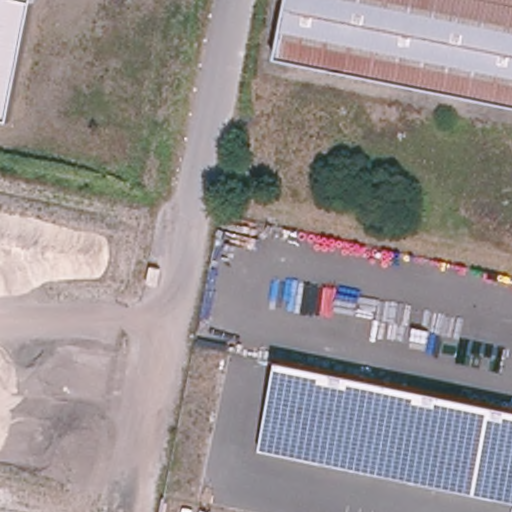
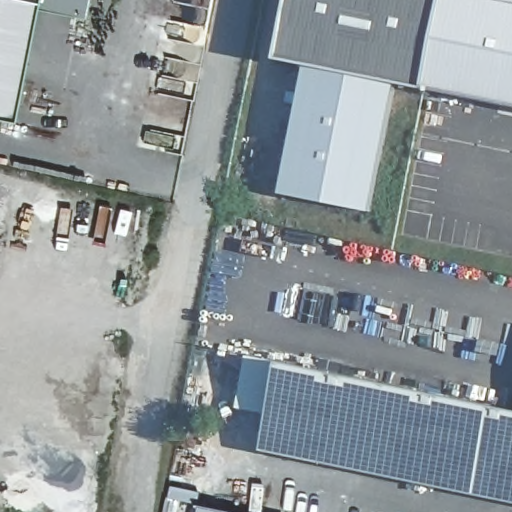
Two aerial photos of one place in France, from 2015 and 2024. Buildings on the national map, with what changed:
unchanged [(82,19),(33,8),(11,120),(0,118),(0,0),(85,0),(82,19)]
unchanged [(289,0),(512,0),(512,106),(396,83),(307,65),(276,59),(289,0)]
new [(307,65),(396,83),(370,212),(282,193),(307,65)]
new [(246,357),(281,363),(272,411),(236,408),(246,357)]
unchanged [(265,452),(281,363),(512,410),(512,503),(265,452)]
new [(236,512),(192,512),(193,504),(236,512)]

